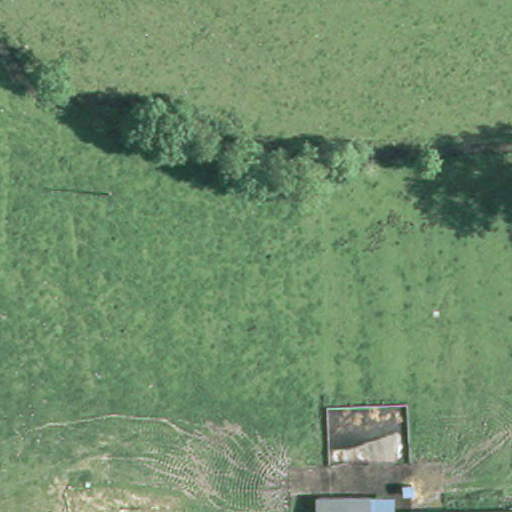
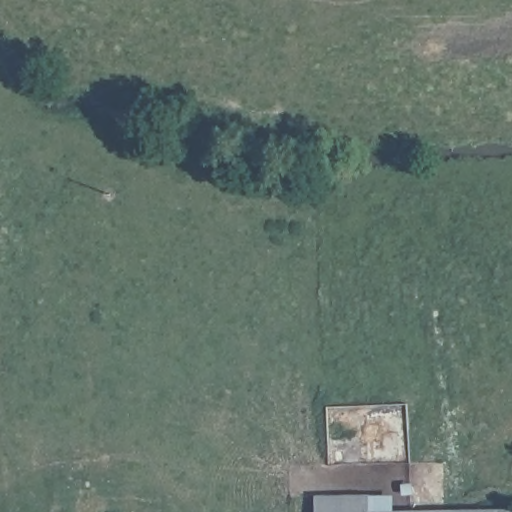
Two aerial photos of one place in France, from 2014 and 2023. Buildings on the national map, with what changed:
unchanged [(317,489),(367,490),(367,506),(367,512),(317,512),(317,489)]
unchanged [(455,505),(512,504),(512,512),(455,512),(455,505)]
unchanged [(367,506),(455,505),(455,512),(367,512),(367,506)]

